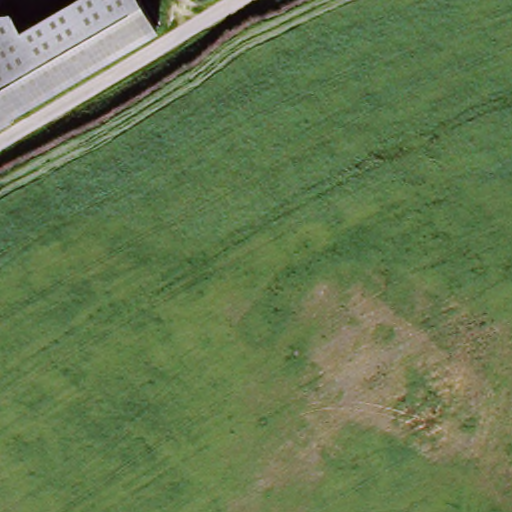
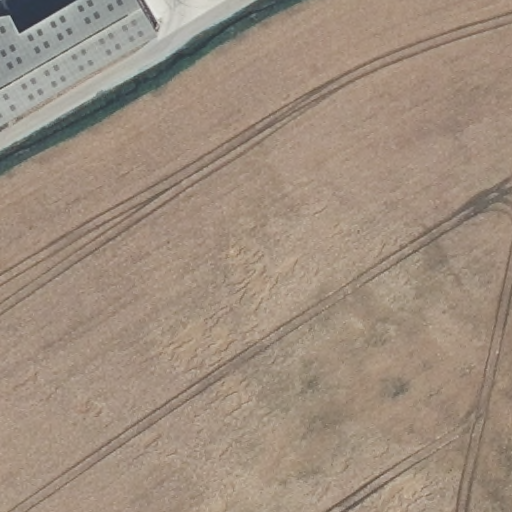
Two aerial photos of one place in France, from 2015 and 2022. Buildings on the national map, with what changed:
unchanged [(17,1),(28,21),(67,0),(150,0),(164,23),(0,121),(0,7),(17,1)]

